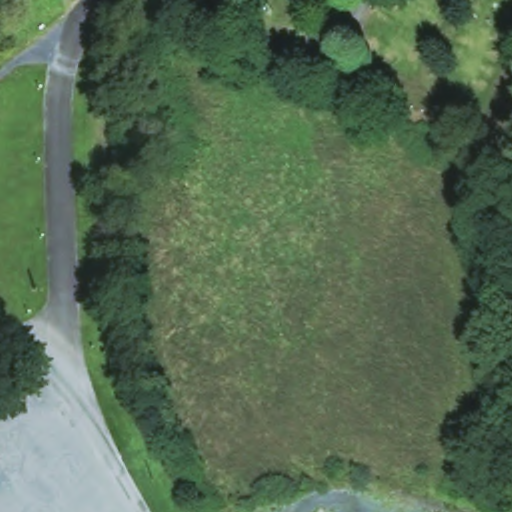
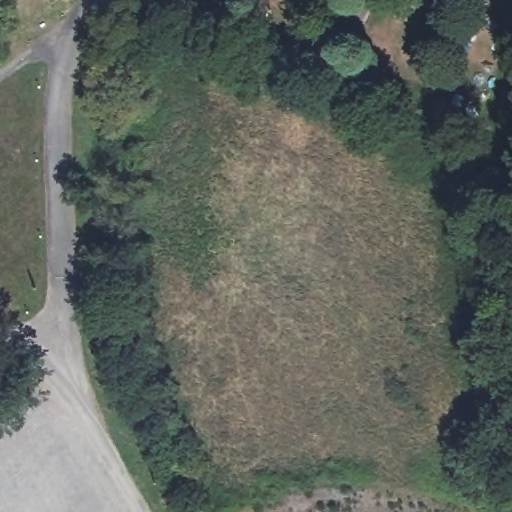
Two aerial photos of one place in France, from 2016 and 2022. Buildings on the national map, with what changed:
unchanged [(323,510),(326,512),(322,512),(323,510)]

